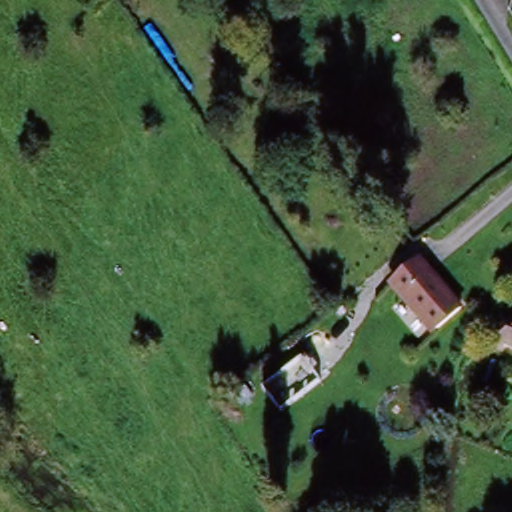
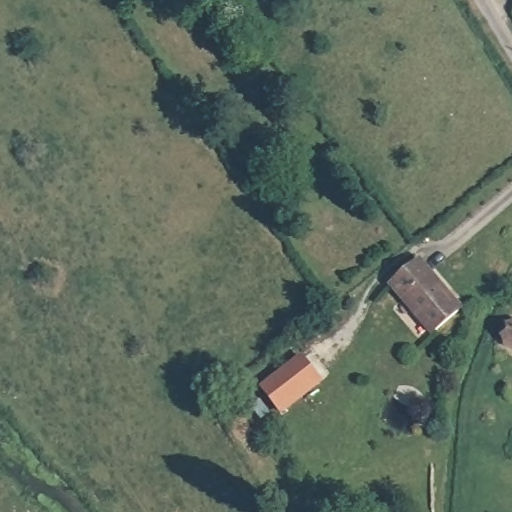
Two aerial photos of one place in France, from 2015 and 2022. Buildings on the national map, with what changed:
unchanged [(425,265),(460,311),(427,334),(393,286),(425,265)]
unchanged [(512,349),(502,345),(511,322),(512,322),(512,349)]
new [(325,384),(282,416),(260,388),(302,355),(325,384)]

